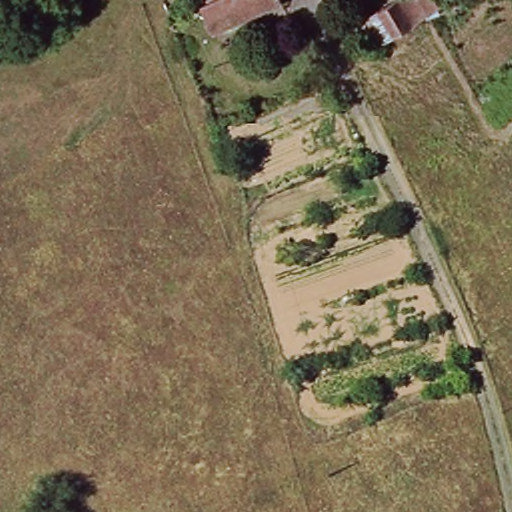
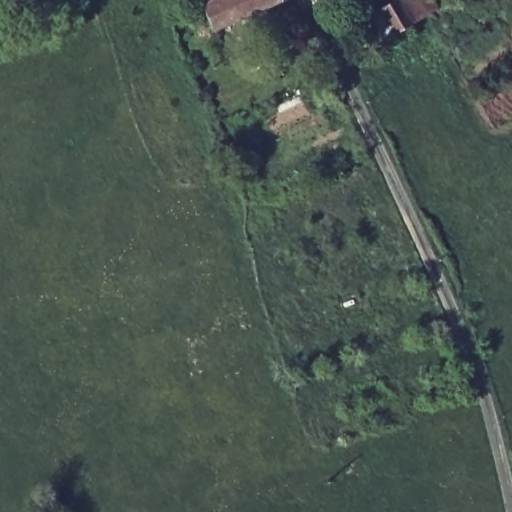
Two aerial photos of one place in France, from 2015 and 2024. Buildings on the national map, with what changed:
unchanged [(279,6),(212,32),(202,8),(204,5),(201,0),(277,0),(279,6)]
unchanged [(425,17),(416,22),(396,33),(381,8),(395,0),(414,0),(425,17)]

